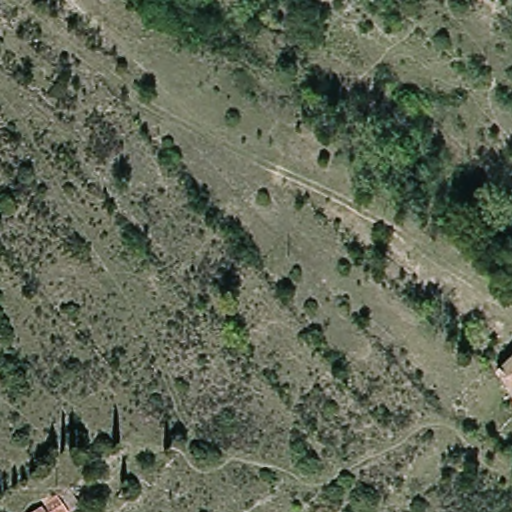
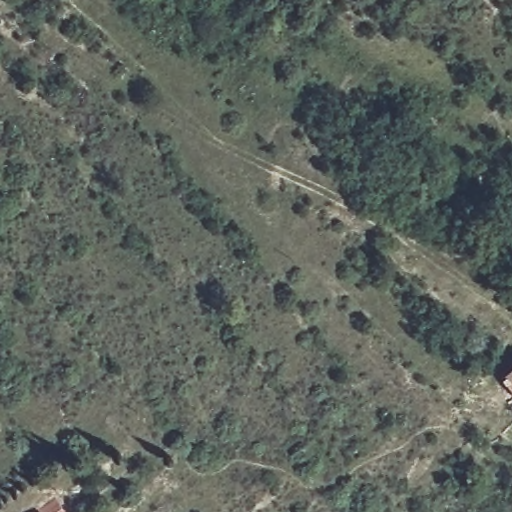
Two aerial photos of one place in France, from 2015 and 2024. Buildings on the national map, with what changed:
unchanged [(512,377),(512,392),(505,383),(512,377)]
unchanged [(41,508),(58,497),(67,512),(35,512),(41,508)]

